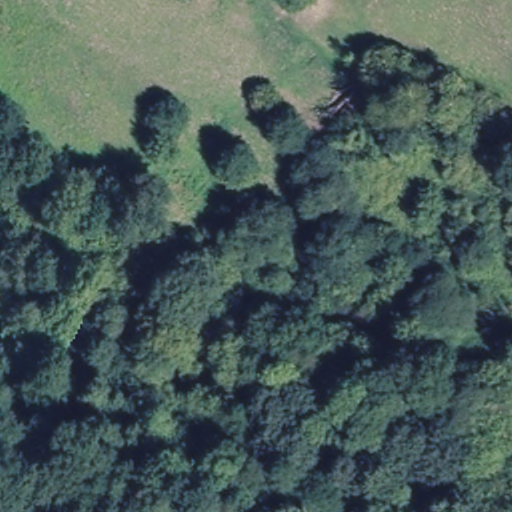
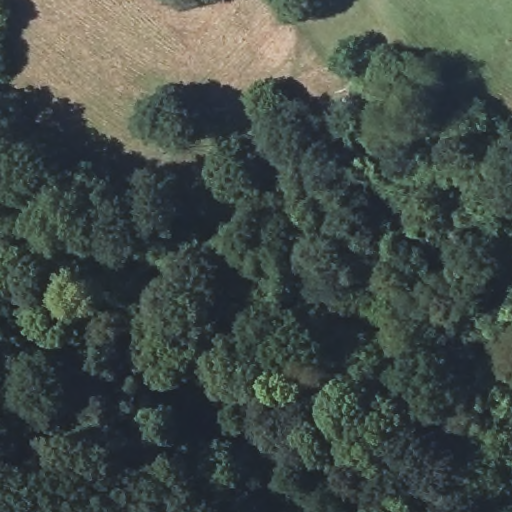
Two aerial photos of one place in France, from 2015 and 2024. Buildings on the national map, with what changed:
[]

